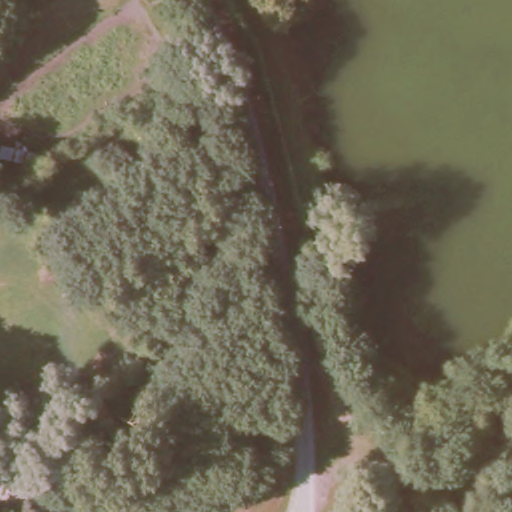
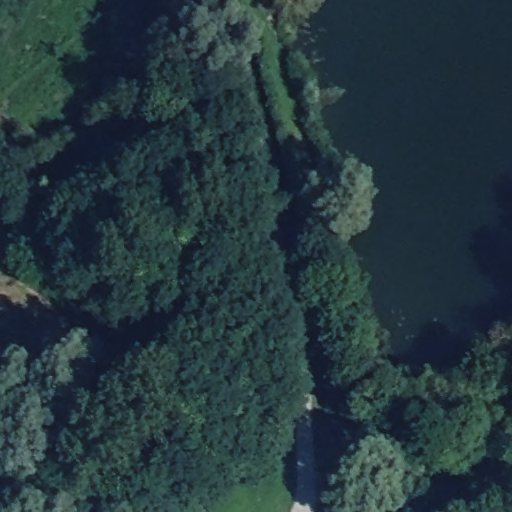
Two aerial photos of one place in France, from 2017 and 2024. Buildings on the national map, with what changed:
unchanged [(118,250),(125,258),(143,244),(156,255),(115,293),(99,272),(118,250)]

